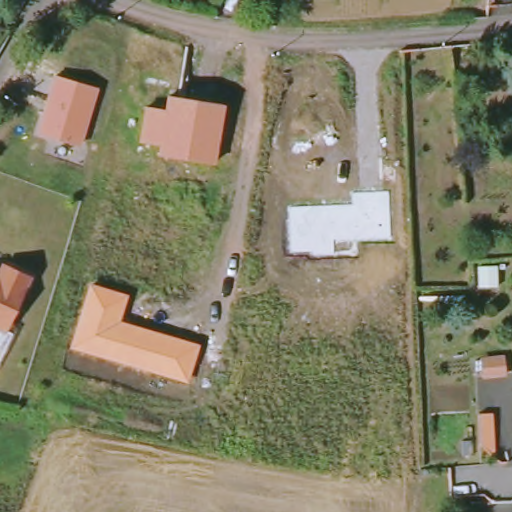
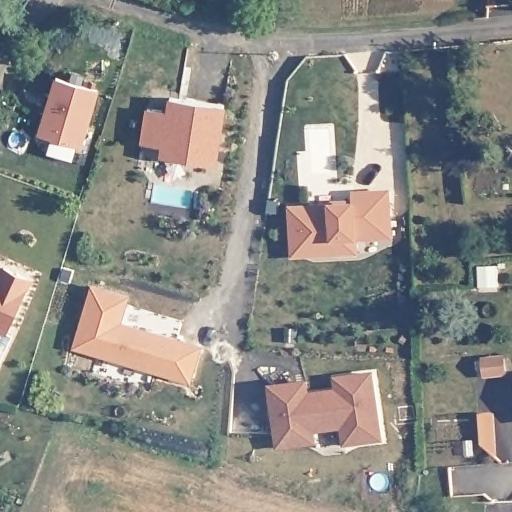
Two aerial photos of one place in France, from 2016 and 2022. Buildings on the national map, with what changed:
unchanged [(99,88),(80,147),(35,134),(55,75),(99,88)]
unchanged [(164,110),(167,95),(225,104),(216,166),(158,156),(161,145),(138,141),(144,106),(164,110)]
unchanged [(352,207),(352,195),(388,193),(390,241),(336,244),(336,257),(313,257),(312,253),(291,253),(291,208),(352,207)]
unchanged [(6,330),(0,327),(0,263),(28,275),(6,330)]
unchanged [(129,296),(120,322),(201,347),(190,385),(69,346),(89,282),(129,296)]
new [(345,446),(343,430),(315,433),(316,443),(276,449),(268,385),(310,379),(311,392),(336,389),(334,377),(376,370),(384,441),(345,446)]

